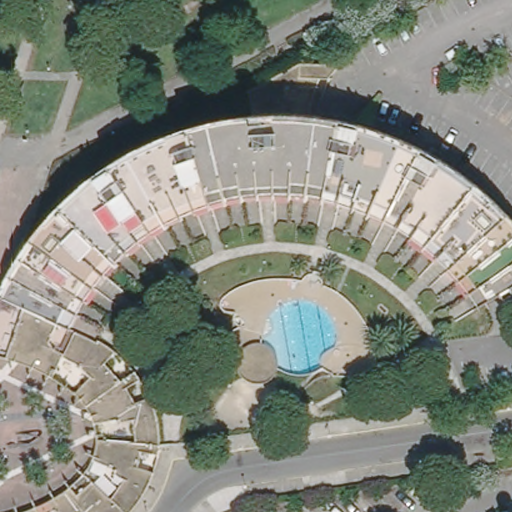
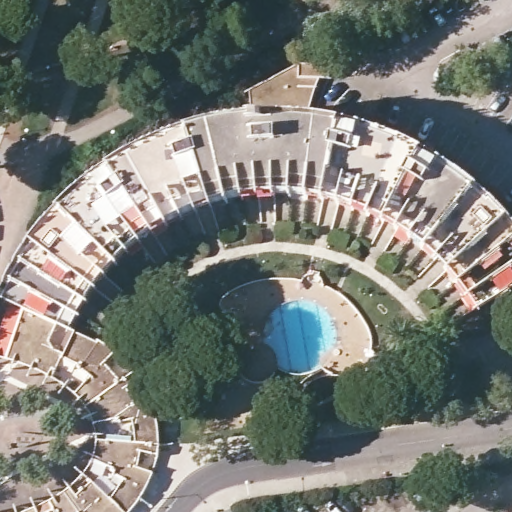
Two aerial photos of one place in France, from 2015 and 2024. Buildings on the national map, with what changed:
unchanged [(97,171),(130,150),(150,140),(178,130),(215,120),(242,115),(258,114),(255,87),(309,61),(346,62),(334,76),(328,76),(319,85),(315,115),(330,117),(348,120),(368,126),(385,131),(403,139),(425,151),(448,163),(463,175),(480,190),(495,204),(507,216),(512,221),(512,234),(456,278),(446,266),(431,251),(415,238),(399,227),(380,217),(362,209),(344,202),(328,197),(309,194),(289,192),(276,192),(260,192),(240,195),(222,197),(202,204),(182,212),(164,220),(143,234),(129,244),(116,256),(102,270),(92,282),(86,291),(16,254),(30,232),(49,211),(75,187),(97,171)]
unchanged [(512,282),(475,305),(467,293),(456,278),(512,234),(512,282)]
unchanged [(16,254),(86,291),(81,298),(66,327),(54,322),(23,306),(0,294),(0,285),(5,273),(16,254)]
unchanged [(3,357),(23,306),(54,322),(48,335),(50,340),(62,347),(55,362),(48,377),(33,368),(22,364),(3,357)]
unchanged [(89,447),(117,458),(117,415),(88,428),(87,425),(83,414),(77,404),(72,397),(86,382),(55,362),(62,347),(70,330),(92,341),(111,353),(102,364),(121,381),(132,371),(139,378),(127,388),(137,404),(150,397),(154,405),(157,417),(159,431),(161,446),(158,456),(144,452),(137,468),(151,474),(142,490),(124,511),(123,512),(48,512),(43,503),(61,491),(68,501),(83,486),(92,493),(105,477),(83,463),(89,447)]
unchanged [(251,345),(257,345),(263,346),(268,347),(273,352),(276,357),(278,363),(279,367),(278,372),(276,377),(272,382),(266,386),(259,387),(252,387),(246,386),(241,381),(236,374),(235,367),(236,359),(239,352),(245,348),(251,345)]
unchanged [(31,512),(23,512),(30,510),(31,512)]

